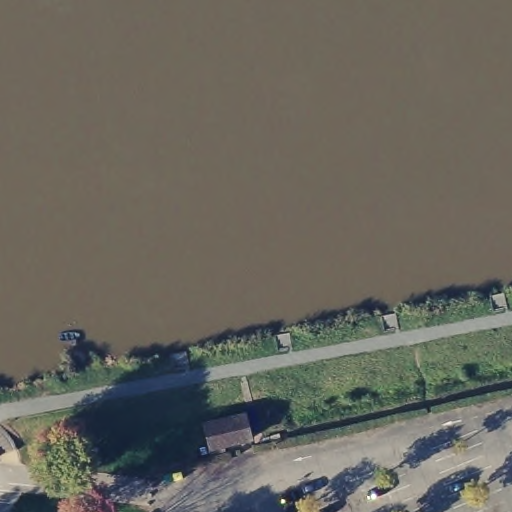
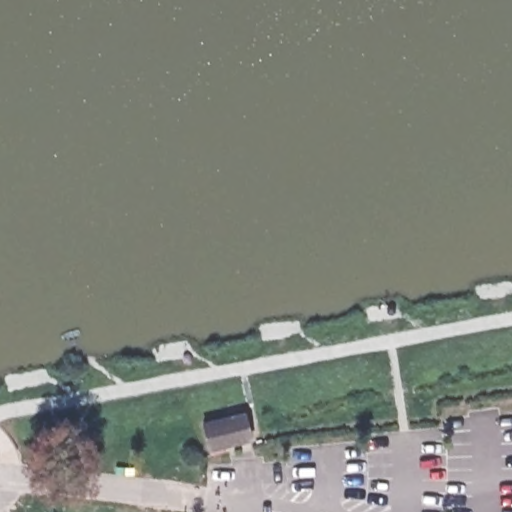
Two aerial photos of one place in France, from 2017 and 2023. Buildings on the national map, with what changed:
unchanged [(207,447),(202,423),(244,413),(250,437),(207,447)]

